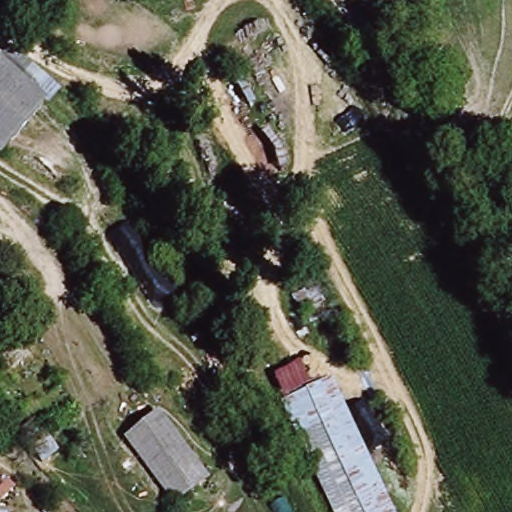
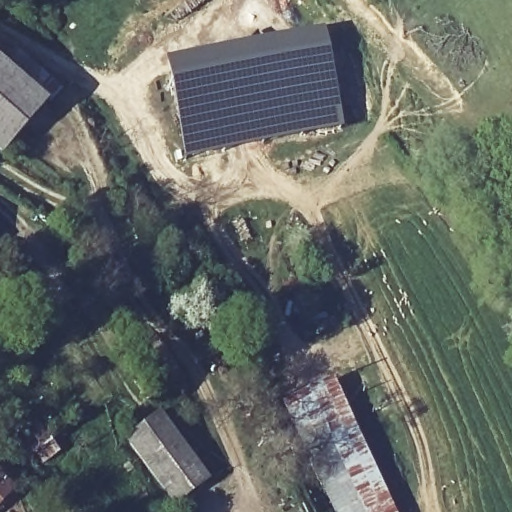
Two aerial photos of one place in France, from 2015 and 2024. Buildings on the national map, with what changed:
new [(322,30),(333,75),(343,127),(181,162),(162,65),(322,30)]
unchanged [(0,63),(42,105),(0,147),(0,63)]
unchanged [(399,512),(338,512),(278,412),(323,385),(399,512)]
unchanged [(206,480),(176,501),(127,435),(157,413),(206,480)]
unchanged [(0,482),(0,479),(1,480),(0,482)]

